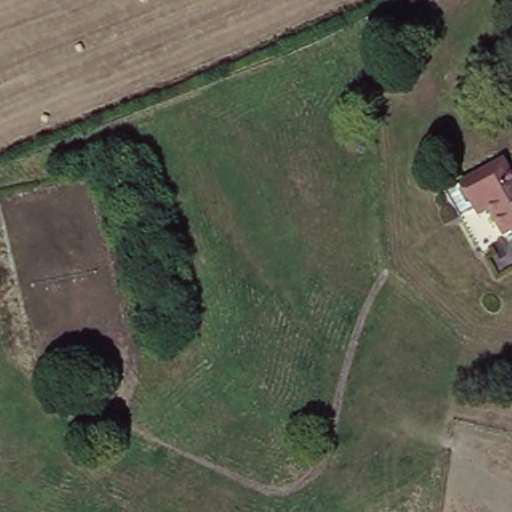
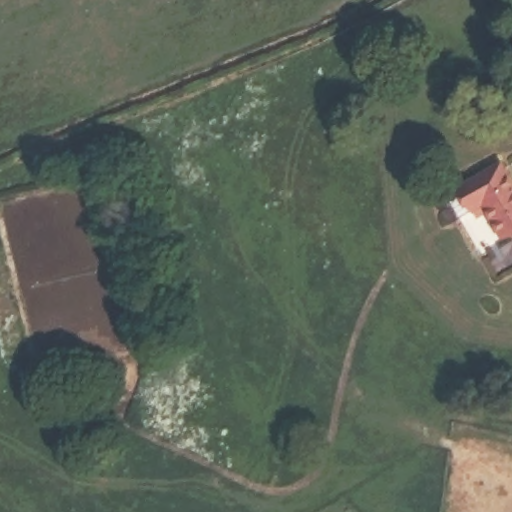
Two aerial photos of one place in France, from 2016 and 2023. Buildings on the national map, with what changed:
unchanged [(472,212),(456,187),(499,160),(512,180),(512,238),(507,241),(492,217),(480,226),(472,212)]

